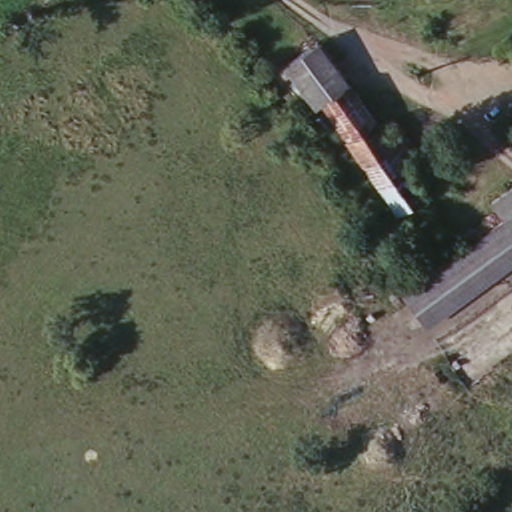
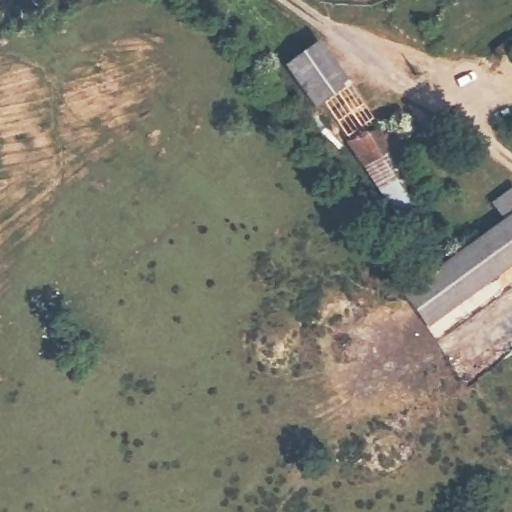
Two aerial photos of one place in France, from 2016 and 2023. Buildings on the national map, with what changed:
unchanged [(339,137),(291,56),(326,37),(374,117),(347,132),(339,137)]
unchanged [(374,117),(377,116),(384,127),(393,122),(414,159),(404,164),(419,190),(391,206),(347,132),(374,117)]
unchanged [(418,318),(399,285),(511,225),(502,208),(512,203),(512,267),(418,318)]

